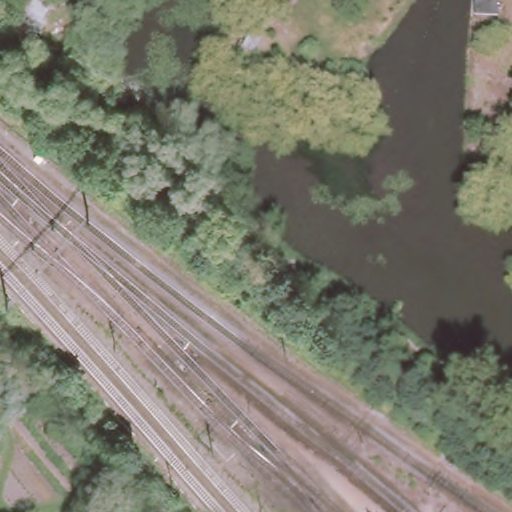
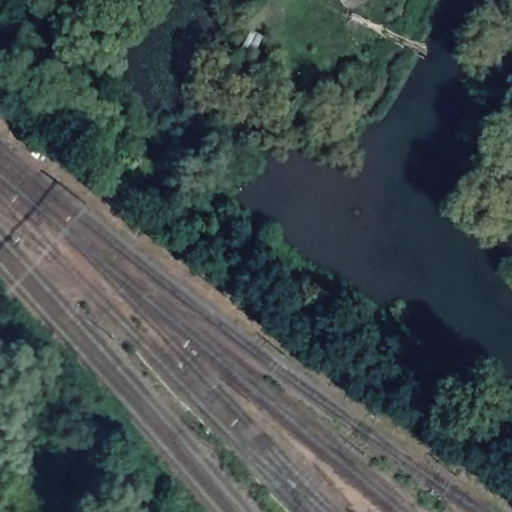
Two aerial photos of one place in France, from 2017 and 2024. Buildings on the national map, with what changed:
unchanged [(41,29),(18,17),(24,0),(50,0),(55,2),(41,29)]
unchanged [(498,15),(476,13),(477,0),(500,0),(498,15)]

